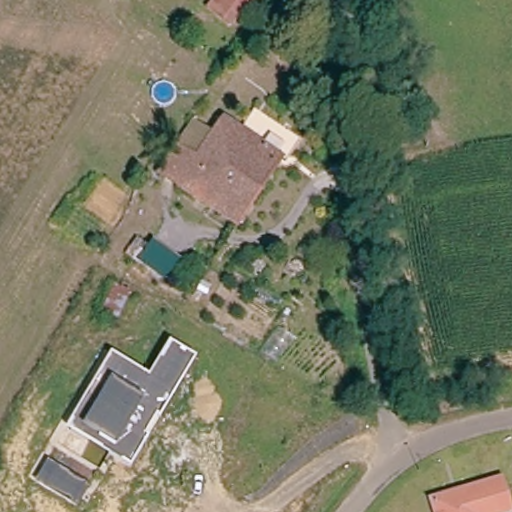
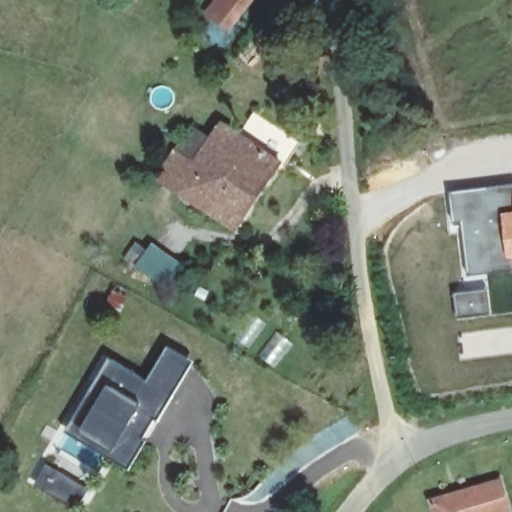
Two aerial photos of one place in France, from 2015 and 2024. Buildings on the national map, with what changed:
unchanged [(205,15),(216,0),(249,0),(225,31),(205,15)]
unchanged [(281,163),(237,228),(169,179),(165,175),(185,148),(200,158),(223,123),(281,163)]
new [(512,184),(512,210),(501,212),(509,262),(510,271),(466,279),(459,226),(450,227),(448,192),(512,184)]
new [(512,210),(512,262),(509,262),(501,212),(512,210)]
unchanged [(149,243),(180,264),(164,285),(135,266),(125,257),(135,240),(146,247),(149,243)]
new [(488,287),(492,316),(457,320),(453,293),(488,287)]
unchanged [(166,345),(193,361),(127,468),(66,429),(109,358),(145,381),(166,345)]
unchanged [(74,508),(35,485),(45,464),(88,489),(74,508)]
unchanged [(435,505),(502,485),(510,512),(437,512),(435,505)]

